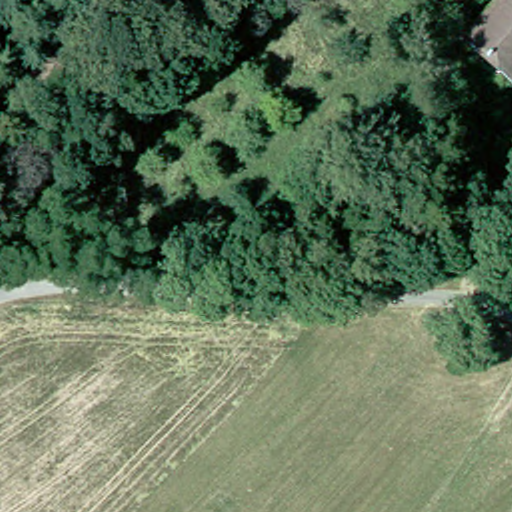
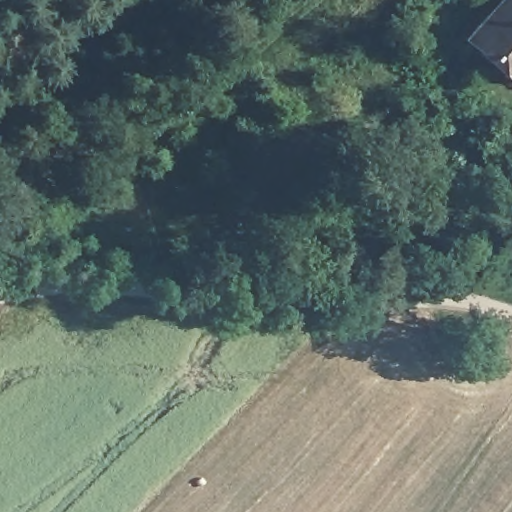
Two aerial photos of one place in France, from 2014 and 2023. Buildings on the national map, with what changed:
unchanged [(512,0),(512,80),(512,81),(461,32),(490,0),(512,0)]

